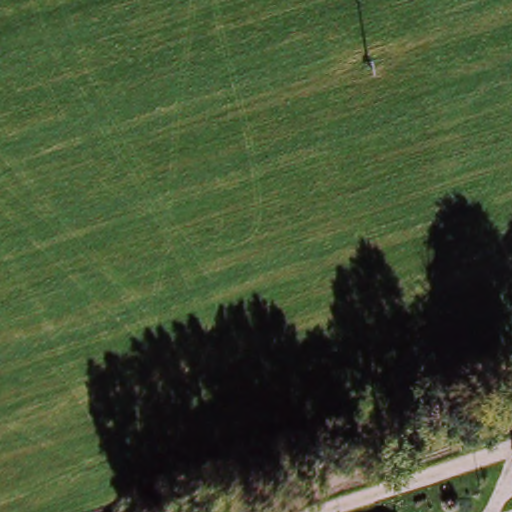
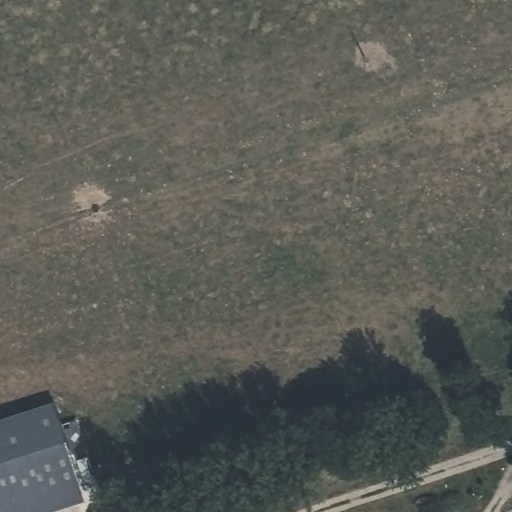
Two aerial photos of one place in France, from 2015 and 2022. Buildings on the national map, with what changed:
new [(87,495),(31,512),(0,512),(0,434),(62,415),(87,495)]
unchanged [(231,512),(183,512),(227,498),(231,512)]

